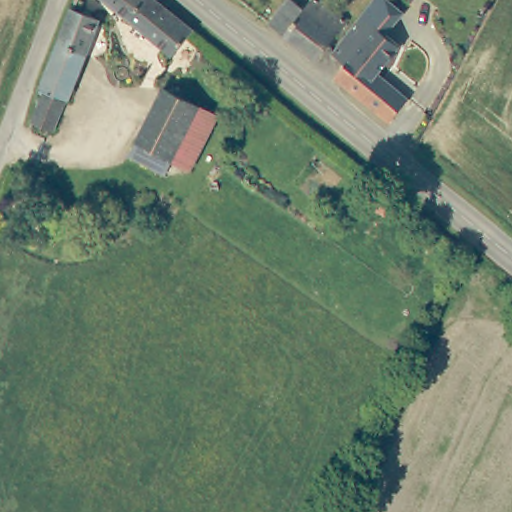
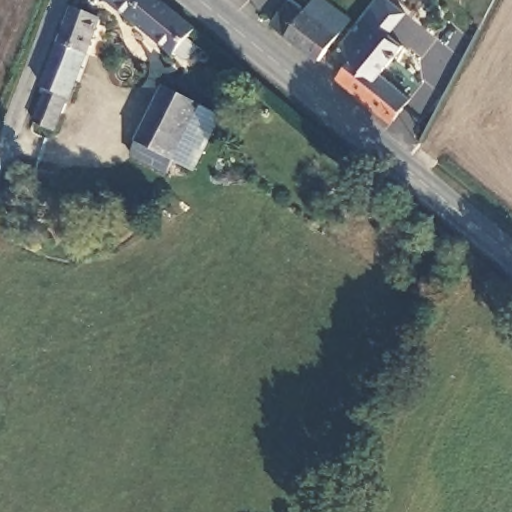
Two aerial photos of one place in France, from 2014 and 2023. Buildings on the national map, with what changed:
unchanged [(172,59),(104,0),(156,0),(195,32),(172,59)]
unchanged [(290,2),(307,12),(315,0),(316,0),(336,14),(348,22),(317,65),(283,44),(289,36),(274,26),(290,2)]
unchanged [(361,19),(366,12),(375,0),(383,0),(402,15),(386,37),(401,49),(393,59),(386,65),(381,71),(379,77),(406,97),(408,99),(385,128),(334,85),(344,72),(329,60),(361,19)]
unchanged [(70,12),(99,24),(81,61),(54,50),(70,12)]
unchanged [(66,101),(40,91),(54,50),(81,61),(66,101)]
unchanged [(40,91),(66,101),(55,135),(29,125),(40,91)]
unchanged [(210,120),(178,175),(163,166),(129,147),(162,92),(194,110),(210,120)]

